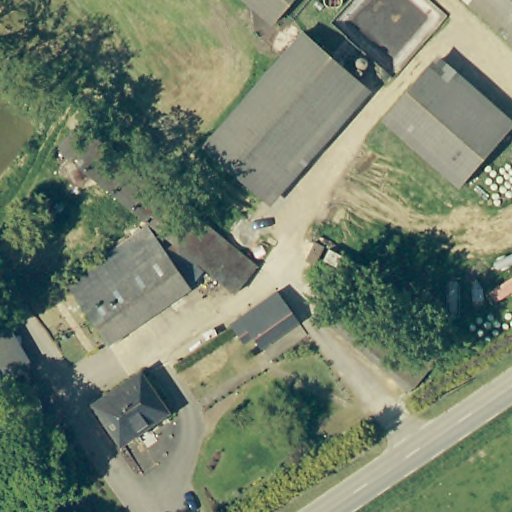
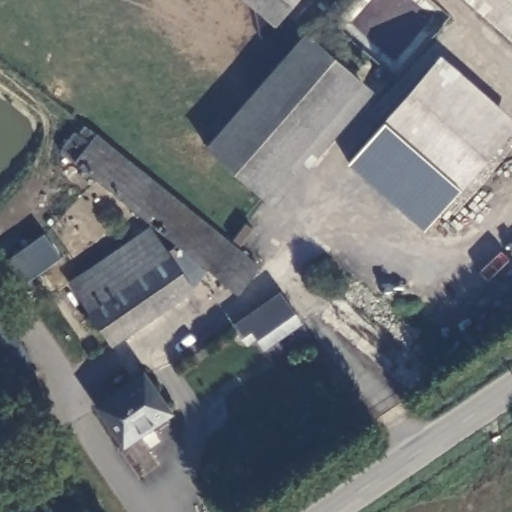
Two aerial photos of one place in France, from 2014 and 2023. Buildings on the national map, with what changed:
unchanged [(276,21),(253,0),(295,0),(276,21)]
unchanged [(472,0),(512,0),(512,36),(472,0)]
unchanged [(307,35),(366,87),(266,201),(207,149),(307,35)]
unchanged [(512,129),(512,130),(462,185),(387,118),(438,62),(512,129)]
new [(348,164),(383,122),(459,188),(423,228),(348,164)]
unchanged [(84,123),(260,263),(236,293),(60,153),(84,123)]
unchanged [(195,292),(116,350),(73,289),(154,234),(195,292)]
unchanged [(438,366),(420,385),(327,307),(349,286),(438,366)]
unchanged [(238,325),(246,318),(283,289),(306,318),(267,348),(259,336),(252,343),(238,325)]
unchanged [(4,372),(0,373),(0,333),(17,328),(20,341),(27,382),(8,386),(4,372)]
unchanged [(171,413),(124,446),(99,410),(140,384),(147,378),(171,413)]

